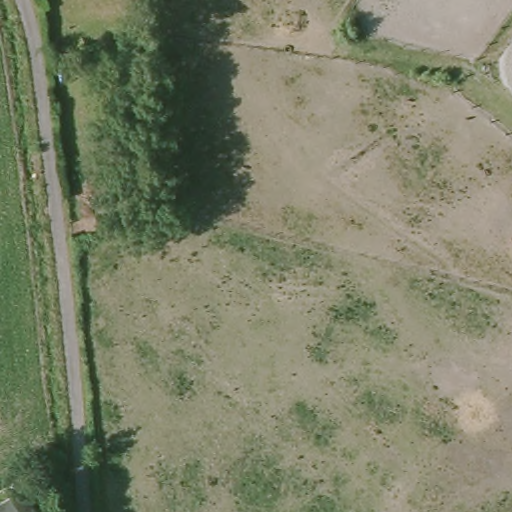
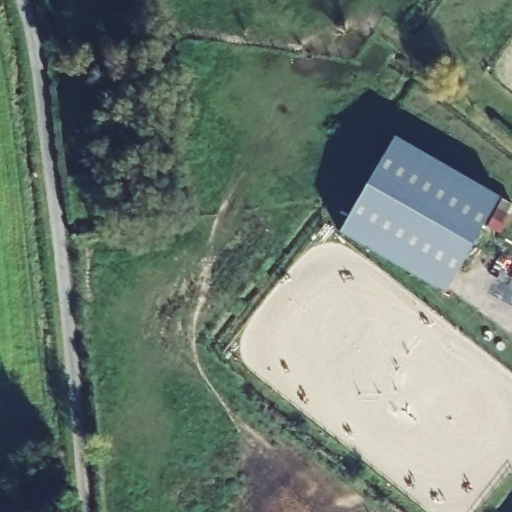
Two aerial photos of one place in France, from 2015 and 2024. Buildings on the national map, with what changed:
new [(495,200),(441,294),(337,235),(392,136),(495,200)]
unchanged [(24,490),(35,512),(0,512),(0,501),(24,490)]

